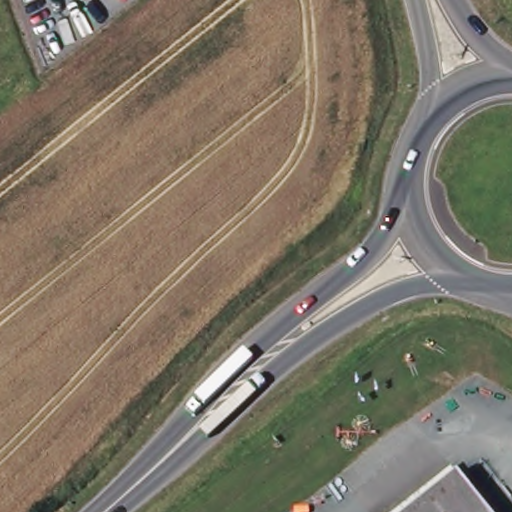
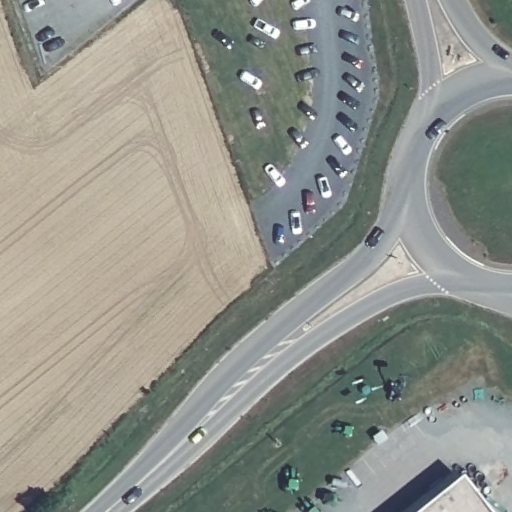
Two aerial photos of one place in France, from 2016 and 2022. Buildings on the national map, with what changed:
unchanged [(458,481),(483,512),(419,512),(458,481)]

